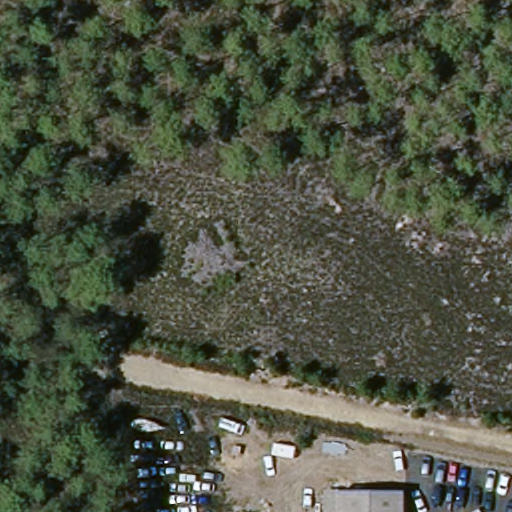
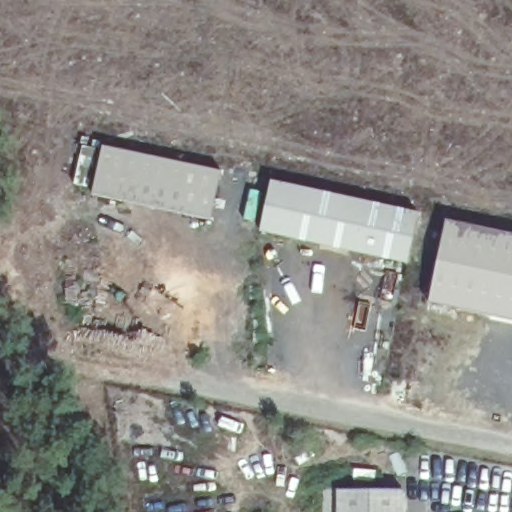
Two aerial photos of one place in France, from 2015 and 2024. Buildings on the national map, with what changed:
new [(93,194),(103,146),(221,172),(211,219),(93,194)]
new [(271,181),(420,215),(407,264),(260,231),(271,181)]
new [(430,302),(446,220),(512,234),(512,319),(430,302)]
unchanged [(322,484),(339,484),(405,486),(405,512),(322,512),(322,484)]

